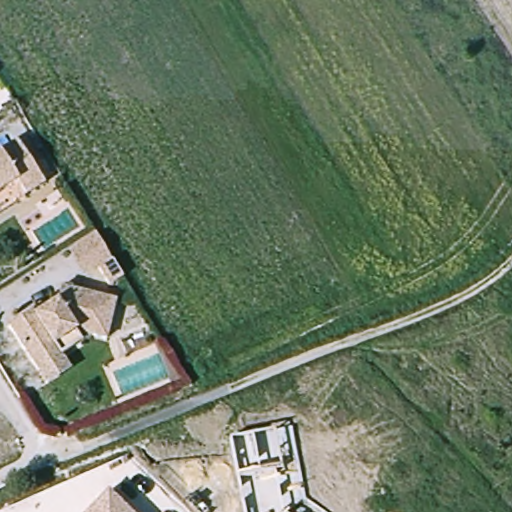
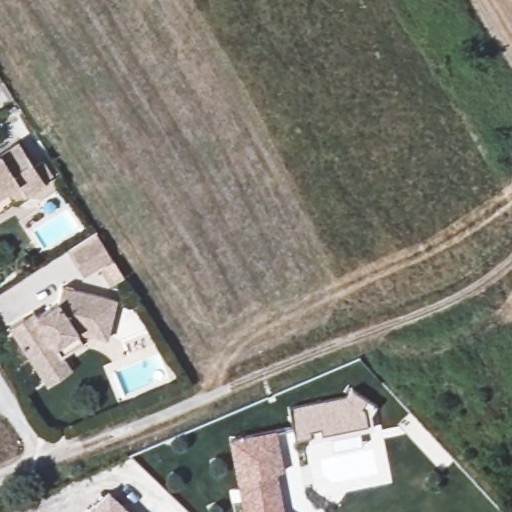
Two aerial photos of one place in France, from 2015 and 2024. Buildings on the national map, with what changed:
unchanged [(44,175),(25,191),(17,177),(0,187),(0,150),(19,138),(44,175)]
unchanged [(103,235),(116,256),(95,270),(82,249),(103,235)]
unchanged [(104,268),(118,259),(128,275),(115,284),(104,268)]
unchanged [(48,379),(40,366),(12,321),(25,312),(36,306),(39,311),(60,298),(66,282),(119,298),(108,336),(95,332),(64,351),(72,364),(48,379)]
new [(375,429),(311,442),(310,437),(294,440),(288,408),(349,396),(368,398),(375,429)]
new [(277,429),(284,469),(276,470),(284,512),(243,512),(229,437),(277,429)]
unchanged [(132,512),(84,512),(108,488),(132,512)]

